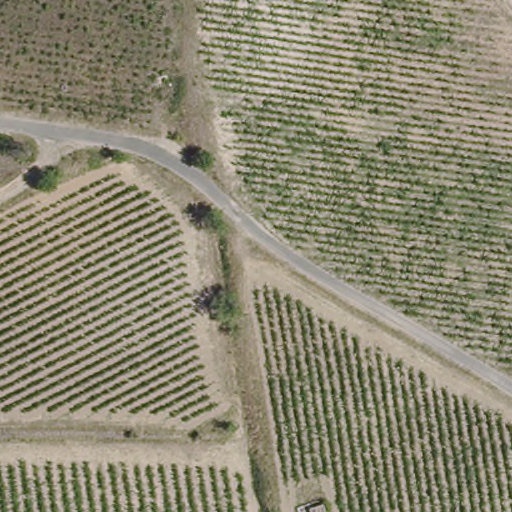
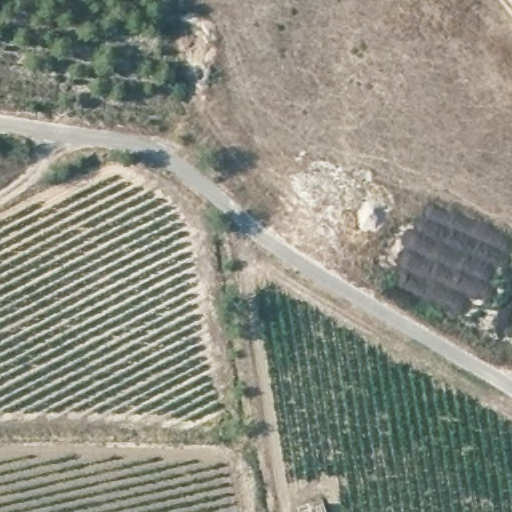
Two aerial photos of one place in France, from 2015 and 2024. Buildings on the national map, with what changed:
unchanged [(306,510),(323,503),(327,512),(307,512),(306,510)]

